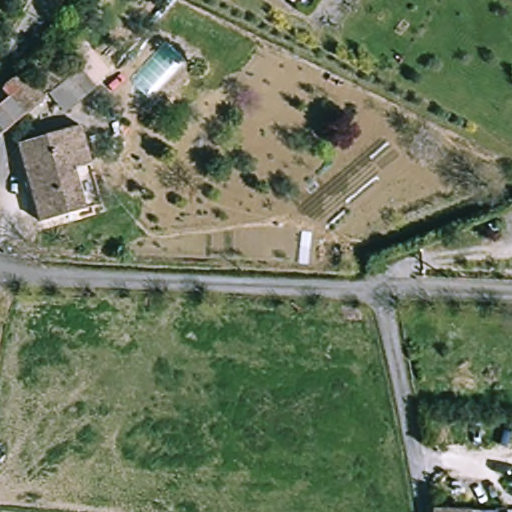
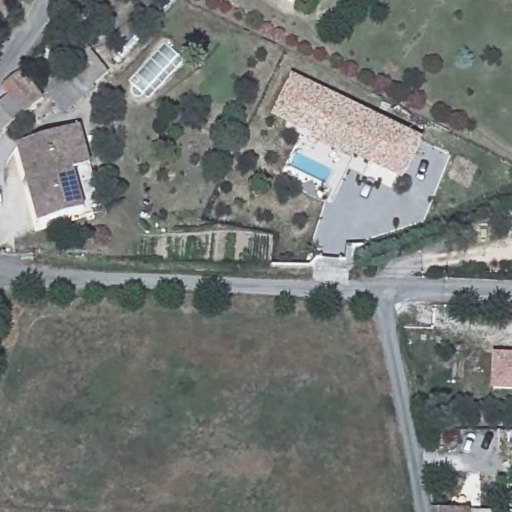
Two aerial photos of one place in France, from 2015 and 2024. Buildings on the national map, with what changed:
unchanged [(286,0),(295,0),(293,4),(286,0)]
unchanged [(48,95),(85,71),(91,80),(97,90),(60,114),(54,105),(48,95)]
unchanged [(0,128),(0,107),(8,100),(0,90),(22,73),(43,100),(22,117),(3,132),(0,128)]
new [(404,181),(355,157),(353,161),(311,140),(313,136),(272,116),(292,74),(425,140),(404,181)]
unchanged [(97,208),(34,222),(16,144),(79,129),(97,208)]
new [(512,356),(512,390),(491,388),(493,355),(512,356)]
unchanged [(497,508),(512,508),(512,512),(497,512),(497,508)]

